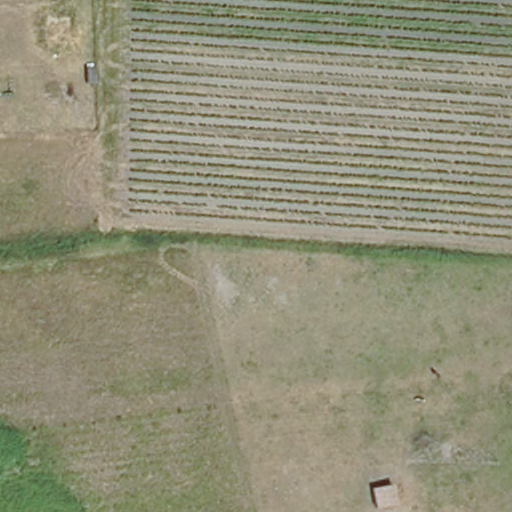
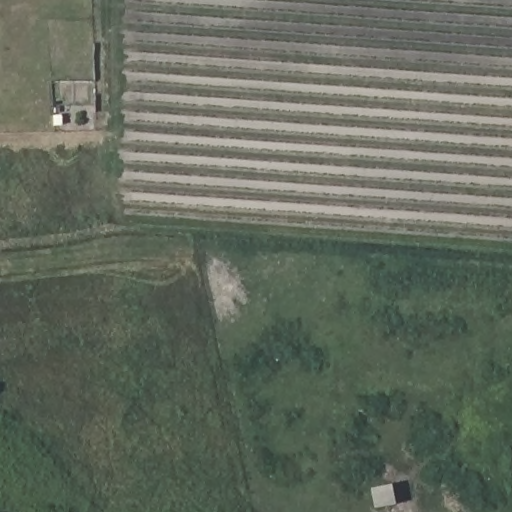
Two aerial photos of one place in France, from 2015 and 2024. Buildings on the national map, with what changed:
[]

